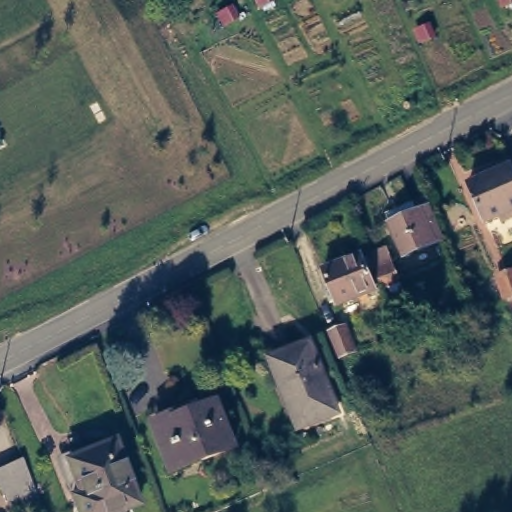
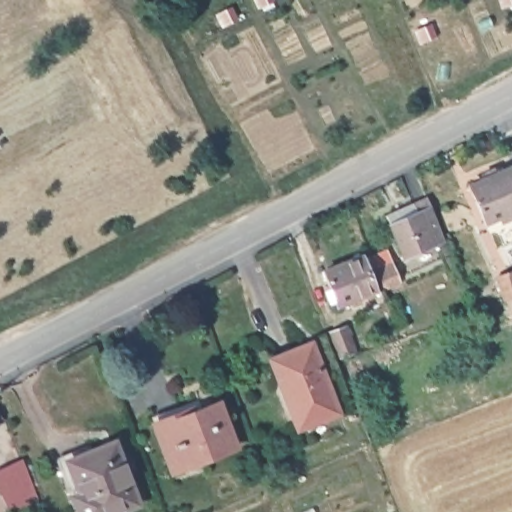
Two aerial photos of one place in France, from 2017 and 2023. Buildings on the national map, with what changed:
unchanged [(502,212),(485,219),(467,181),(482,174),(482,170),(490,165),(492,170),(510,163),(512,169),(512,214),(504,217),(502,212)]
unchanged [(410,254),(394,217),(402,213),(401,209),(407,206),(408,211),(423,204),(437,235),(424,241),(426,246),(410,254)]
unchanged [(361,254),(375,287),(337,303),(335,298),(329,300),(326,291),(331,288),(323,268),(361,254)]
unchanged [(392,259),(400,278),(381,287),(374,267),(392,259)]
unchanged [(512,272),(512,299),(505,302),(497,277),(512,272)]
unchanged [(392,322),(402,317),(405,327),(395,331),(392,322)]
unchanged [(298,320),(319,341),(313,346),(292,325),(298,320)]
unchanged [(343,328),(355,353),(338,360),(329,333),(343,328)]
unchanged [(322,380),(335,416),(303,429),(283,383),(290,380),(281,359),(313,346),(327,377),(322,380)]
unchanged [(172,467),(152,418),(188,405),(190,410),(215,400),(232,443),(172,467)]
unchanged [(107,512),(80,512),(72,492),(80,490),(67,457),(113,438),(137,500),(107,512)]
unchanged [(33,490),(7,502),(0,489),(0,471),(21,461),(33,490)]

